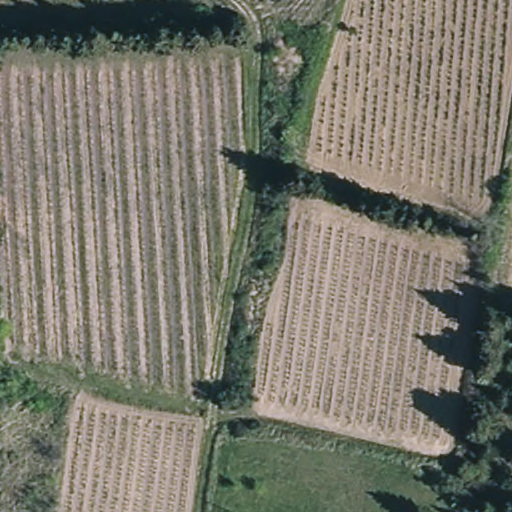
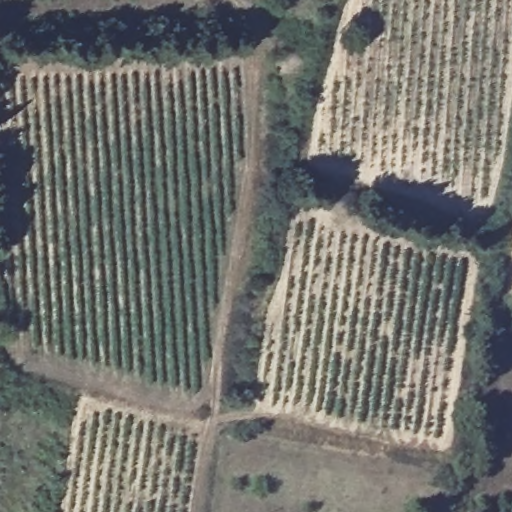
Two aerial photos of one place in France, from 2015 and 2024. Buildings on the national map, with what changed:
[]

